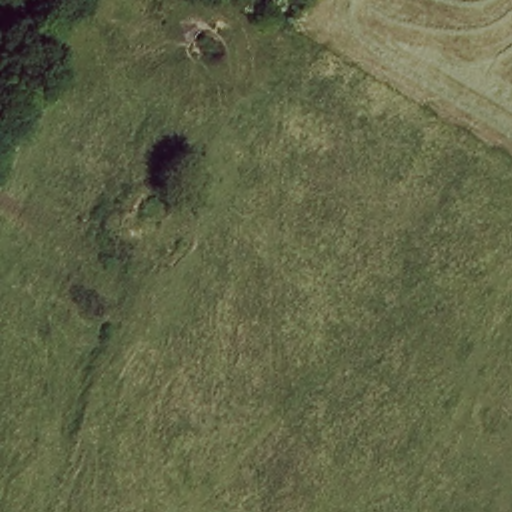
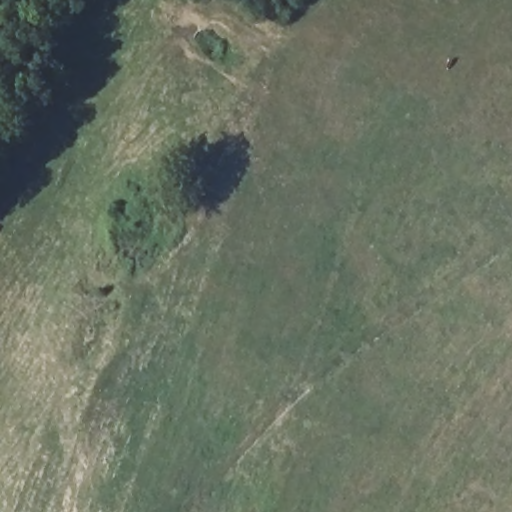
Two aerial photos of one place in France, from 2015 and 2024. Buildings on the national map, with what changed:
[]

